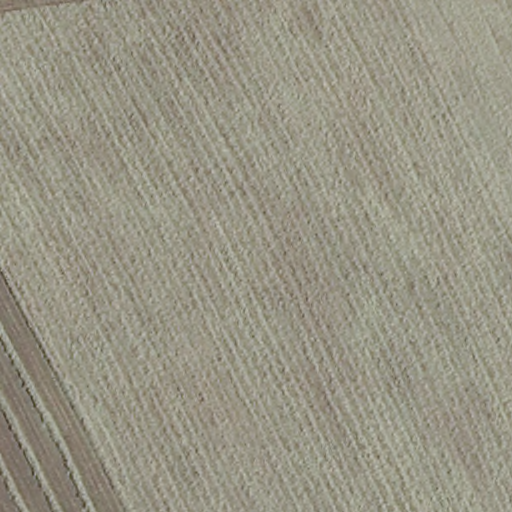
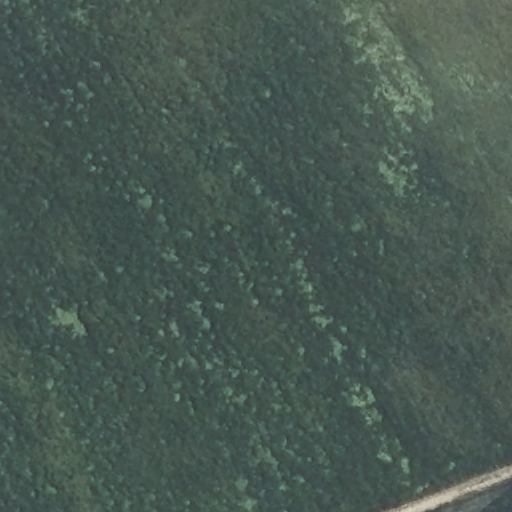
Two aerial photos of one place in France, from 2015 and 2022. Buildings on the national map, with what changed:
[]

